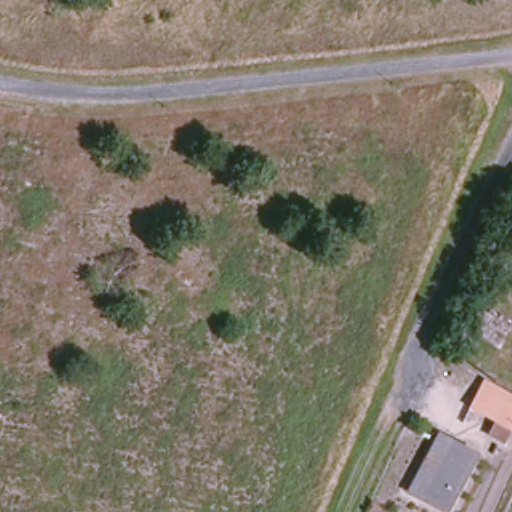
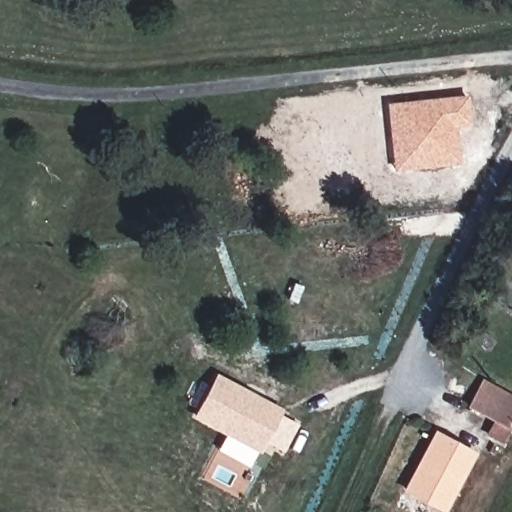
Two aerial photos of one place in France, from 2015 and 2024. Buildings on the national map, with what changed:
new [(467,94),(470,126),(457,128),(461,163),(392,170),(386,103),(467,94)]
new [(299,425),(285,452),(267,443),(261,453),(193,417),(216,373),(284,410),(281,416),(299,425)]
unchanged [(512,424),(504,439),(488,433),(496,417),(469,402),(480,377),(512,394),(512,424)]
unchanged [(439,428),(474,447),(443,508),(407,490),(439,428)]

